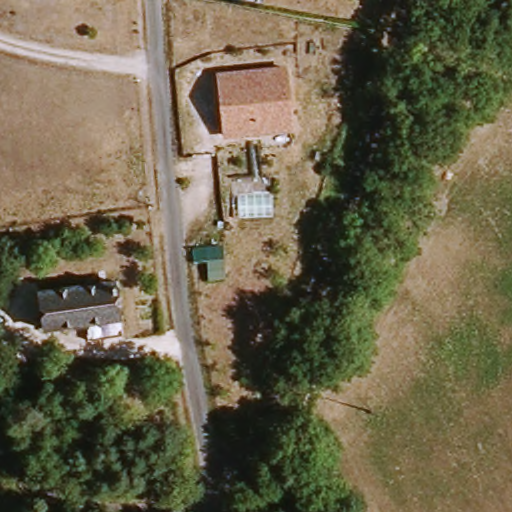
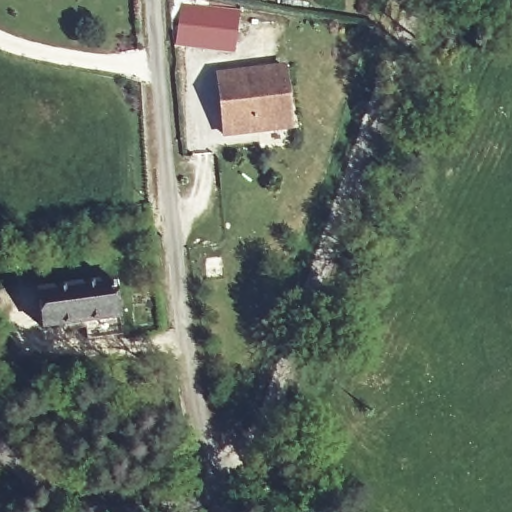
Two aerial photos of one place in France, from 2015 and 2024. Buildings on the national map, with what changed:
new [(177,43),(182,3),(238,12),(234,52),(177,43)]
unchanged [(217,74),(283,63),(295,121),(228,132),(217,74)]
unchanged [(225,276),(210,278),(207,259),(223,257),(225,276)]
unchanged [(116,278),(121,318),(44,327),(38,288),(116,278)]

